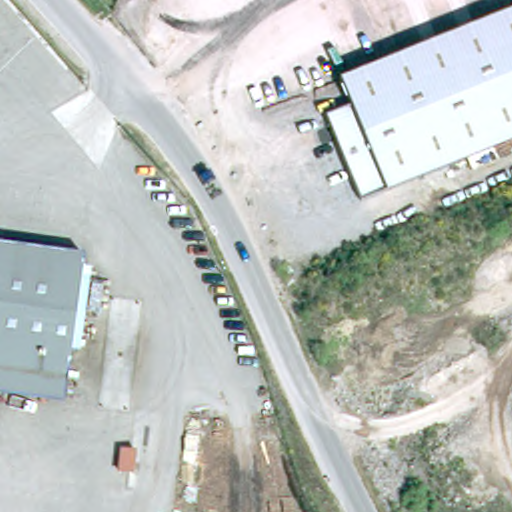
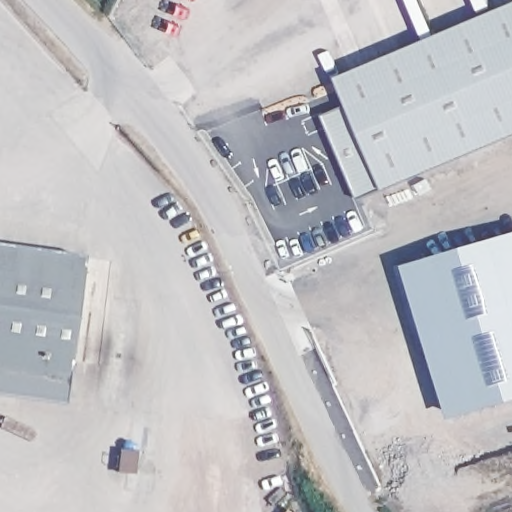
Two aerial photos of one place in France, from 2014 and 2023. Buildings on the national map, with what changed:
unchanged [(321,116),(346,104),(336,84),(512,4),(512,134),(359,203),(321,116)]
new [(512,234),(512,402),(455,419),(409,265),(512,234)]
unchanged [(66,349),(60,384),(58,403),(0,395),(0,247),(79,259),(66,349)]

